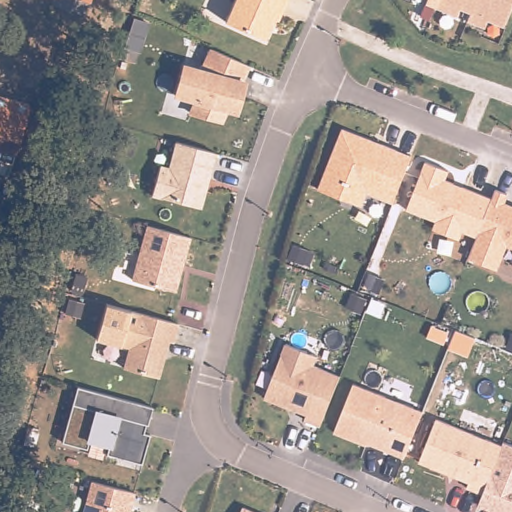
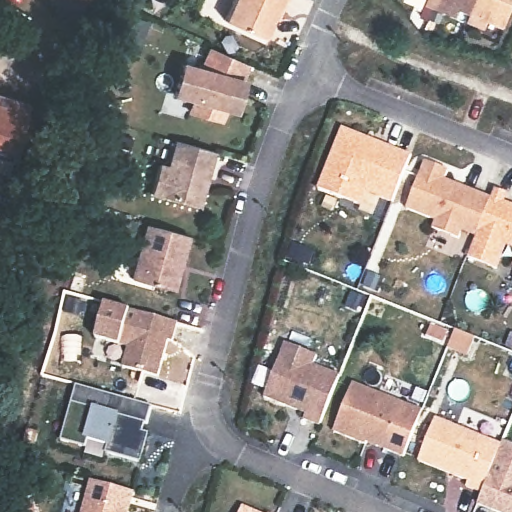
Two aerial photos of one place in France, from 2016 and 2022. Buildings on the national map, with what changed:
unchanged [(73,0),(91,0),(90,4),(73,0)]
unchanged [(275,17),(266,38),(223,20),(232,0),(287,0),(278,18),(275,17)]
unchanged [(491,21),(486,32),(465,23),(468,13),(461,10),(457,20),(424,5),(426,0),(512,0),(512,11),(505,28),(491,21)]
unchanged [(200,65),(208,47),(252,66),(240,113),(227,111),(222,124),(190,114),(193,104),(170,95),(179,60),(200,65)]
unchanged [(0,157),(0,96),(29,105),(14,152),(12,161),(0,157)]
unchanged [(411,156),(393,203),(369,193),(363,209),(315,186),(340,126),(411,156)]
unchanged [(215,152),(198,210),(148,196),(156,165),(167,168),(175,138),(215,152)]
unchanged [(189,236),(176,289),(130,277),(144,224),(189,236)]
unchanged [(179,323),(175,342),(169,340),(160,378),(121,368),(126,350),(96,341),(106,302),(179,323)]
unchanged [(306,334),(299,349),(318,357),(315,368),(342,376),(322,429),(302,419),(304,413),(264,397),(290,329),(306,334)]
unchanged [(423,408),(405,460),(333,432),(352,381),(423,408)]
unchanged [(150,403),(143,431),(148,433),(139,462),(105,453),(106,447),(88,443),(86,448),(63,442),(76,385),(150,403)]
unchanged [(504,441),(512,444),(512,512),(492,512),(474,505),(478,495),(464,489),(465,482),(419,464),(436,417),(503,446),(504,441)]
unchanged [(136,490),(131,512),(81,512),(88,478),(136,490)]
unchanged [(258,512),(239,512),(242,505),(258,512)]

